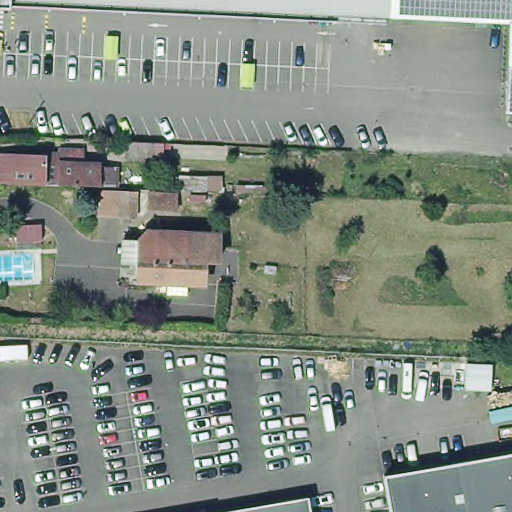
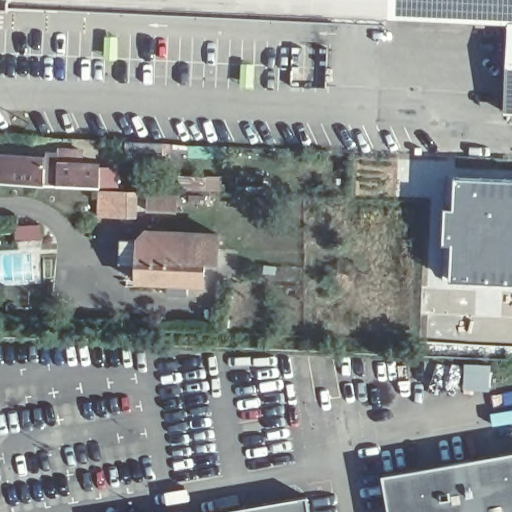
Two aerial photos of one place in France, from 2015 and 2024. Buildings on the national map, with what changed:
new [(9,9),(0,9),(0,0),(10,0),(9,9)]
unchanged [(260,9),(36,0),(261,0),(260,9)]
unchanged [(261,0),(512,0),(511,19),(260,9),(261,0)]
unchanged [(512,108),(508,107),(511,19),(512,0),(512,108)]
unchanged [(168,158),(133,156),(134,141),(136,142),(170,143),(168,158)]
unchanged [(57,181),(10,178),(0,178),(0,148),(10,148),(30,149),(50,150),(62,151),(62,146),(77,147),(77,160),(100,161),(100,182),(57,181)]
new [(453,206),(455,175),(512,177),(512,284),(450,280),(451,244),(443,244),(445,205),(453,206)]
unchanged [(138,220),(97,220),(98,190),(139,191),(138,220)]
unchanged [(150,204),(151,194),(178,196),(177,206),(150,204)]
unchanged [(177,275),(150,274),(143,273),(143,254),(132,254),(133,233),(151,234),(157,223),(227,228),(227,254),(215,254),(213,277),(198,276),(197,287),(175,286),(177,275)]
new [(464,361),(491,362),(490,389),(462,389),(464,361)]
unchanged [(512,512),(398,512),(391,472),(512,450),(512,512)]
unchanged [(391,472),(398,512),(388,512),(381,474),(382,474),(391,472)]
unchanged [(309,512),(216,512),(306,496),(309,512)]

